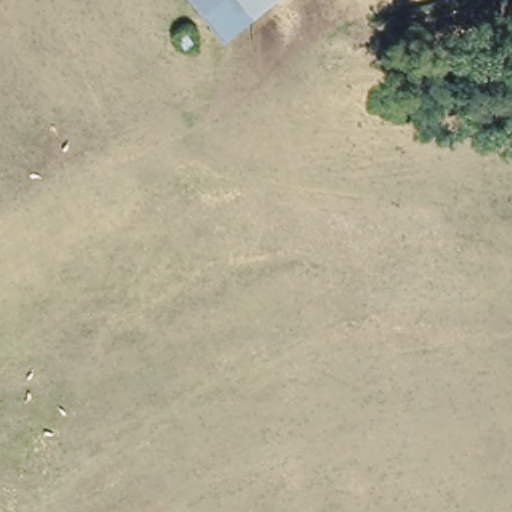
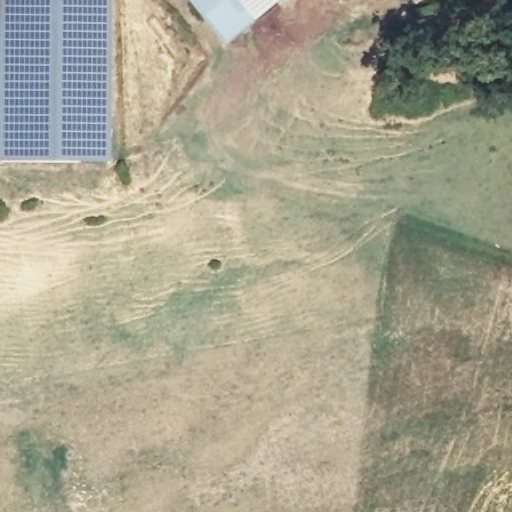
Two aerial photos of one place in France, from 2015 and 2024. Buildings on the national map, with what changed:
new [(108,162),(0,162),(0,0),(111,0),(108,162)]
unchanged [(248,21),(220,42),(188,0),(233,0),(248,21)]
unchanged [(233,0),(274,0),(248,21),(233,0)]

